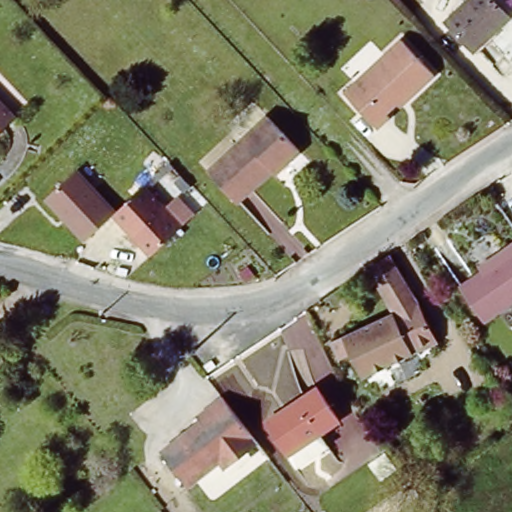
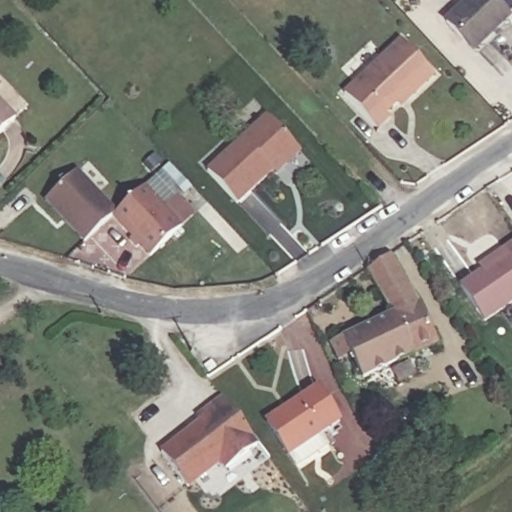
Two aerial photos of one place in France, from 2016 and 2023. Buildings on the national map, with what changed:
unchanged [(446,23),(468,0),(493,0),(506,13),(497,22),(472,47),(446,23)]
unchanged [(406,101),(402,97),(386,111),(389,116),(376,128),(342,92),(399,39),(434,76),(406,101)]
unchanged [(0,132),(0,109),(11,121),(0,132)]
unchanged [(301,152),(281,171),(278,168),(238,205),(208,173),(269,117),(301,152)]
unchanged [(76,165),(116,208),(144,181),(183,224),(149,253),(113,211),(82,239),(43,196),(76,165)]
unchanged [(483,323),(458,288),(505,254),(502,250),(512,242),(512,302),(483,323)]
unchanged [(412,292),(435,346),(359,381),(340,339),(391,315),(369,271),(389,256),(412,292)]
unchanged [(338,421),(288,453),(266,420),(317,388),(338,421)]
unchanged [(259,445),(226,470),(221,462),(188,487),(161,452),(201,422),(198,418),(223,399),(259,445)]

